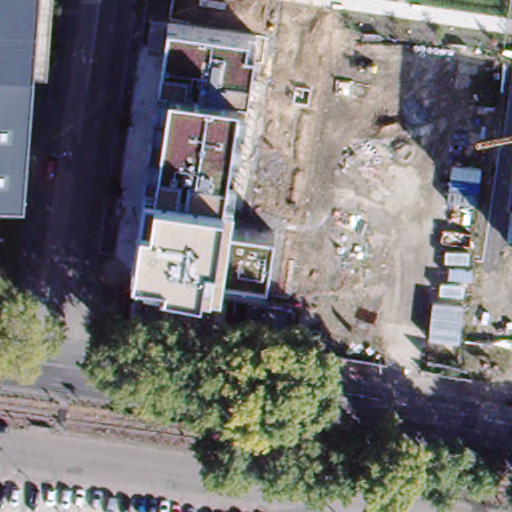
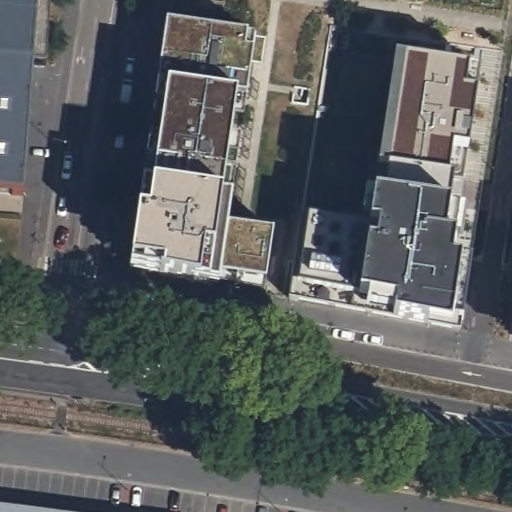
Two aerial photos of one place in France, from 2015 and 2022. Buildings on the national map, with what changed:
unchanged [(28,194),(0,192),(0,0),(44,0),(28,194)]
unchanged [(265,282),(220,272),(218,286),(198,281),(162,273),(130,266),(130,262),(143,183),(152,184),(167,85),(157,84),(162,48),(147,46),(150,19),(166,22),(255,35),(246,96),(236,95),(221,195),(231,196),(228,225),(272,232),(265,282)]
new [(428,313),(426,323),(395,317),(395,312),(365,311),(351,292),(298,285),(307,216),(368,226),(373,196),(383,197),(388,168),(378,167),(396,56),(470,67),(480,68),(477,90),(468,148),(453,146),(446,177),(454,177),(450,205),(458,206),(451,255),(471,259),(461,319),(428,313)]
new [(0,512),(0,506),(49,512),(0,512)]

